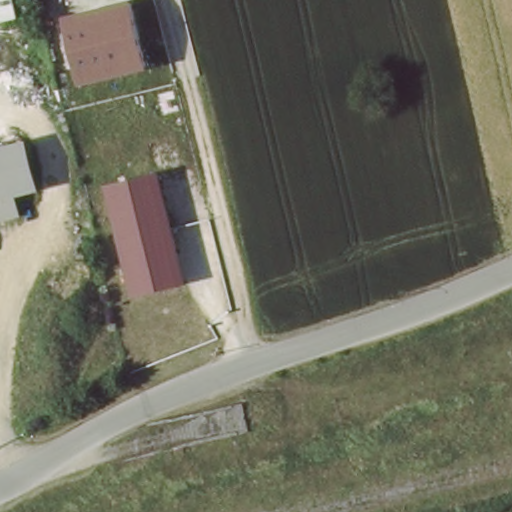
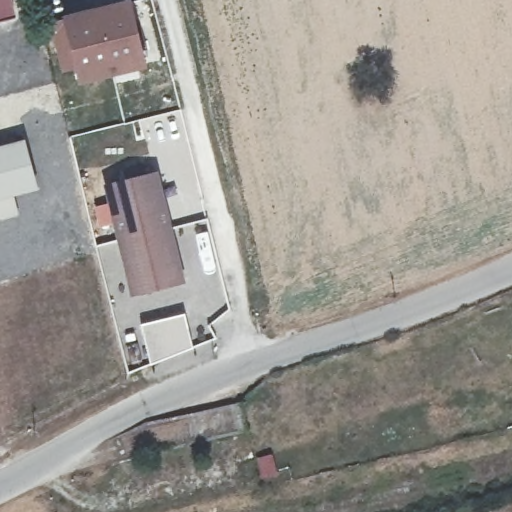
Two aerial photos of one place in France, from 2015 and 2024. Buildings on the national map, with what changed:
unchanged [(0,27),(0,0),(14,0),(20,22),(0,27)]
unchanged [(83,82),(64,15),(126,0),(132,0),(149,66),(83,82)]
unchanged [(42,188),(18,194),(23,214),(0,220),(0,147),(30,139),(42,188)]
unchanged [(156,176),(184,284),(130,298),(105,188),(156,176)]
new [(185,312),(194,346),(152,364),(142,322),(185,312)]

